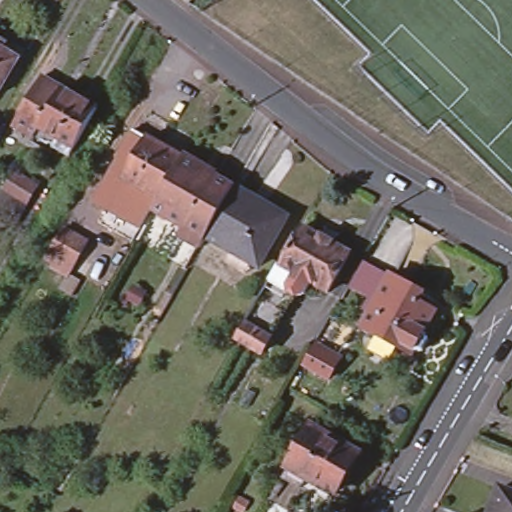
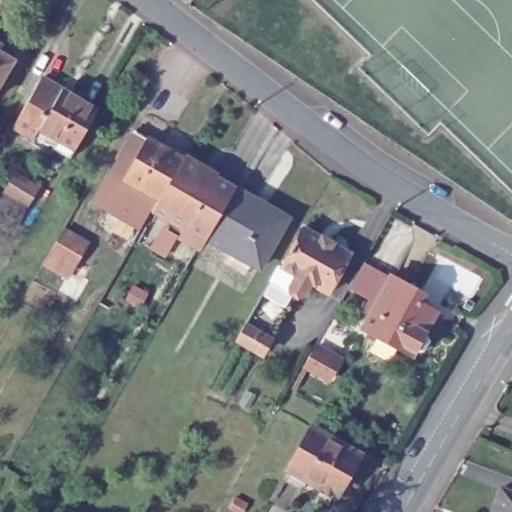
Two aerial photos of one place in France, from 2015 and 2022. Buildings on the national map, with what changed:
unchanged [(11,61),(0,79),(0,54),(11,61)]
unchanged [(59,87),(36,127),(31,136),(9,123),(38,75),(59,87)]
unchanged [(94,107),(96,109),(69,157),(67,156),(49,146),(53,138),(36,127),(59,87),(94,107)]
unchanged [(114,157),(112,156),(128,127),(178,155),(154,197),(151,196),(120,178),(128,165),(114,157)]
unchanged [(178,155),(178,154),(213,173),(211,175),(231,186),(203,235),(202,237),(148,207),(154,197),(178,155)]
unchanged [(103,210),(89,201),(114,157),(128,165),(120,178),(151,196),(138,219),(134,227),(103,210)]
unchanged [(11,171),(35,185),(24,204),(16,217),(0,207),(0,190),(11,171)]
unchanged [(281,214),(253,263),(245,259),(223,247),(203,235),(231,186),(281,214)]
unchanged [(291,278),(286,289),(273,282),(279,271),(278,270),(300,230),(316,239),(319,239),(329,245),(330,247),(347,257),(324,297),(308,287),(291,278)]
unchanged [(89,267),(78,261),(72,271),(45,256),(59,232),(85,247),(97,253),(89,267)]
unchanged [(278,270),(279,271),(273,282),(286,289),(291,278),(308,287),(301,298),(293,302),(291,302),(259,358),(232,343),(274,268),(278,270)]
unchanged [(418,292),(413,301),(432,312),(421,331),(424,333),(424,339),(418,350),(412,352),(409,350),(408,354),(358,326),(387,275),(418,292)]
unchanged [(310,346),(334,361),(324,377),(300,363),(310,346)]
unchanged [(335,487),(310,473),(304,483),(285,473),(313,424),(329,433),(333,427),(350,437),(346,443),(357,449),(335,487)]
unchanged [(512,490),(512,512),(492,512),(502,486),(512,490)]

